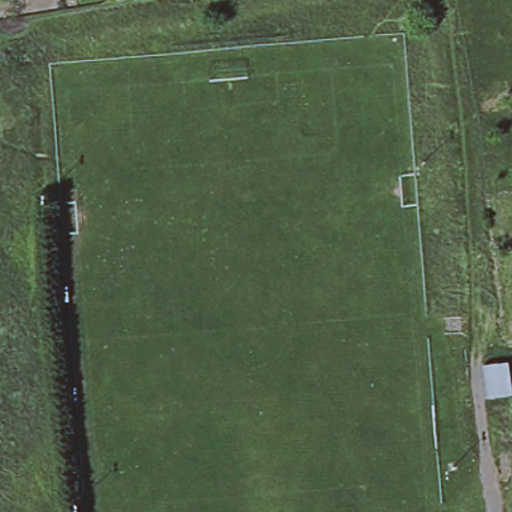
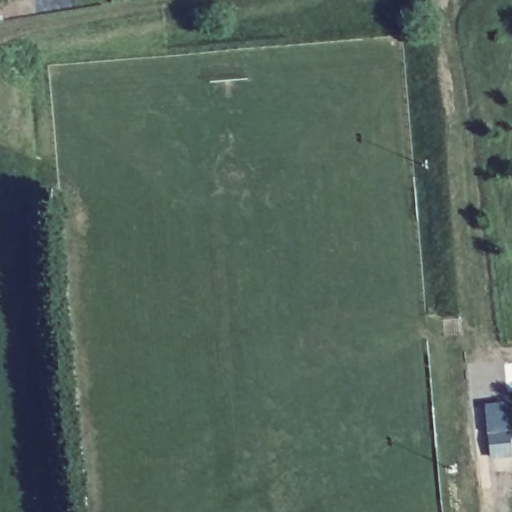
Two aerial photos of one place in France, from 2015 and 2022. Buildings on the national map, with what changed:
unchanged [(512,356),(512,393),(495,395),(489,361),(512,356)]
new [(507,398),(512,456),(489,456),(484,402),(507,398)]

